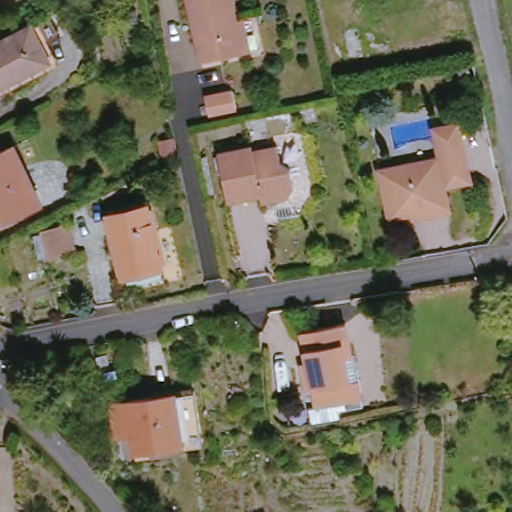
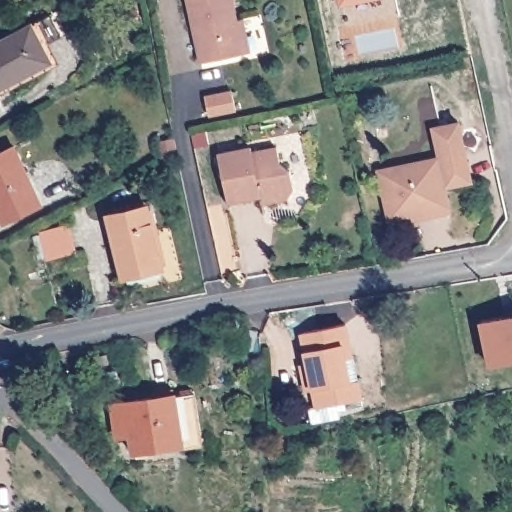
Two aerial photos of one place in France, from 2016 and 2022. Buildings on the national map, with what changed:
unchanged [(238,55),(197,64),(183,0),(226,0),(231,22),(237,21),(245,53),(238,55)]
unchanged [(0,93),(0,35),(32,17),(55,63),(0,93)]
unchanged [(403,214),(380,217),(372,169),(415,161),(433,159),(444,150),(441,128),(462,124),(471,183),(443,188),(447,211),(425,215),(404,218),(403,214)]
unchanged [(247,150),(247,153),(273,149),(277,165),(287,172),(292,192),(285,202),(283,203),(277,204),(272,201),(259,204),(259,200),(227,206),(216,157),(247,150)]
unchanged [(5,226),(0,215),(0,154),(10,150),(40,208),(5,226)]
unchanged [(121,280),(115,256),(105,217),(145,208),(154,249),(160,271),(121,280)]
unchanged [(69,260),(42,266),(36,237),(64,231),(69,260)]
new [(505,316),(505,313),(512,311),(512,361),(490,366),(481,322),(505,316)]
unchanged [(347,315),(362,396),(338,400),(339,407),(309,413),(306,400),(314,399),(312,381),(305,382),(302,363),(300,355),(305,354),(300,324),(347,315)]
unchanged [(112,403),(181,397),(185,446),(116,452),(112,403)]

